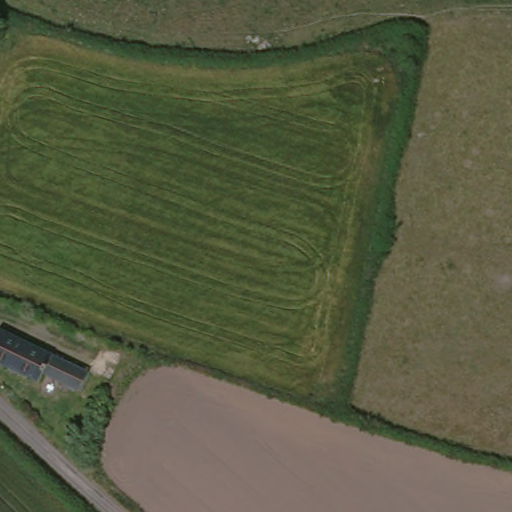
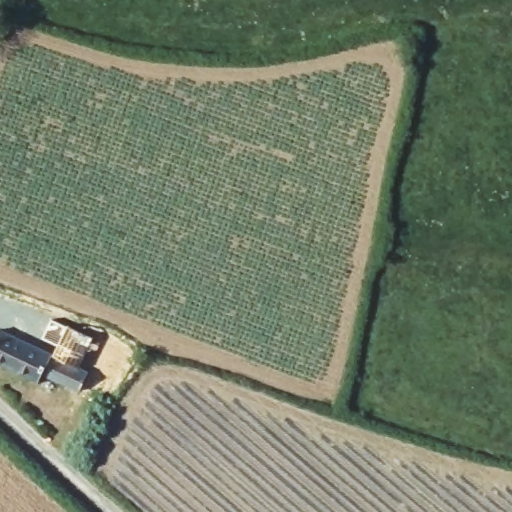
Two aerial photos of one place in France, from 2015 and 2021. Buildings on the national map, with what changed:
unchanged [(61,356),(89,370),(78,394),(42,378),(37,387),(0,370),(0,328),(11,332),(61,356)]

